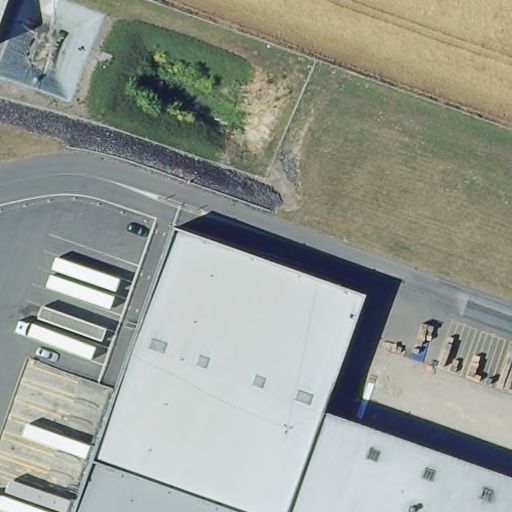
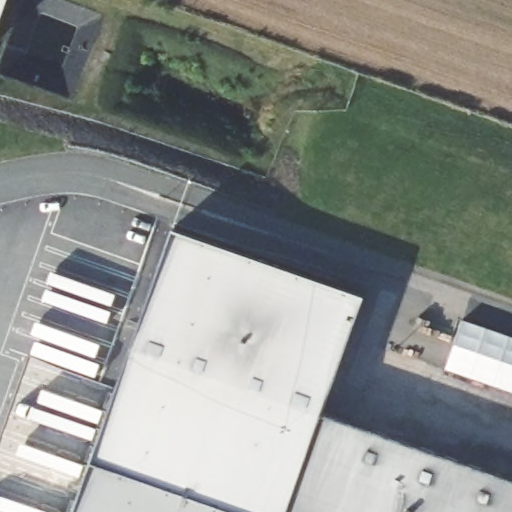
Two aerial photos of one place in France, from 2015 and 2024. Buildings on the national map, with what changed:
unchanged [(170,229),(362,295),(350,329),(246,293),(159,262),(170,229)]
unchanged [(322,411),(512,477),(512,512),(234,512),(90,463),(159,262),(246,293),(350,329),(322,411)]
new [(512,338),(512,393),(444,370),(461,321),(512,338)]
unchanged [(90,463),(234,512),(122,512),(78,497),(90,463)]
unchanged [(78,497),(122,512),(73,512),(78,497)]

